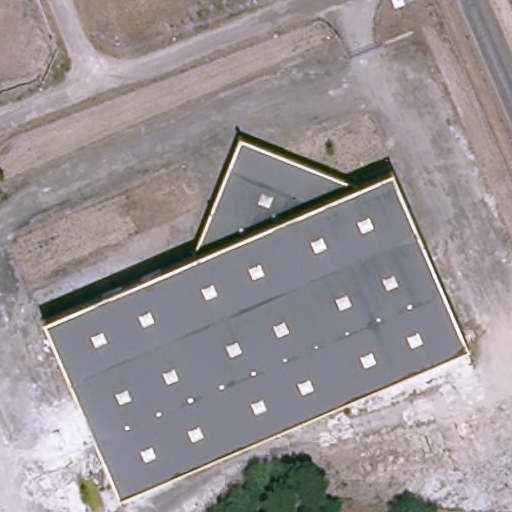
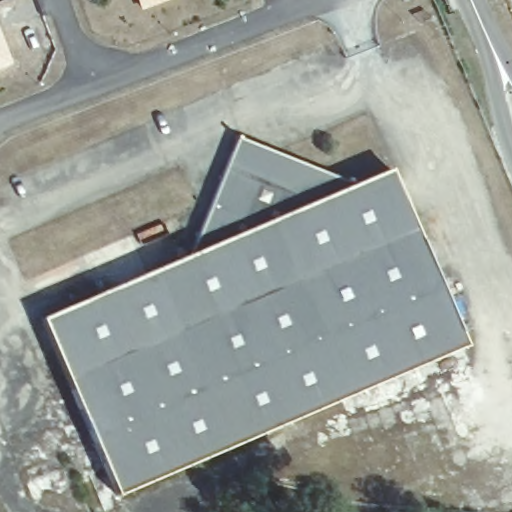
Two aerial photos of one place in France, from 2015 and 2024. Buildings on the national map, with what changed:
new [(12,64),(0,68),(0,32),(12,64)]
unchanged [(357,182),(391,168),(468,345),(120,494),(44,317),(189,255),(195,237),(229,148),(235,132),(253,139),(339,175),(357,182)]

